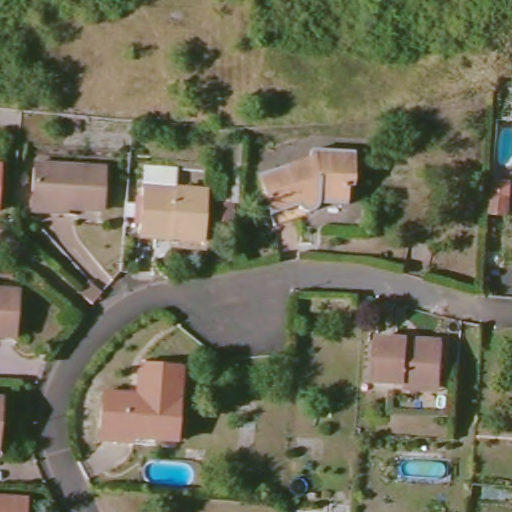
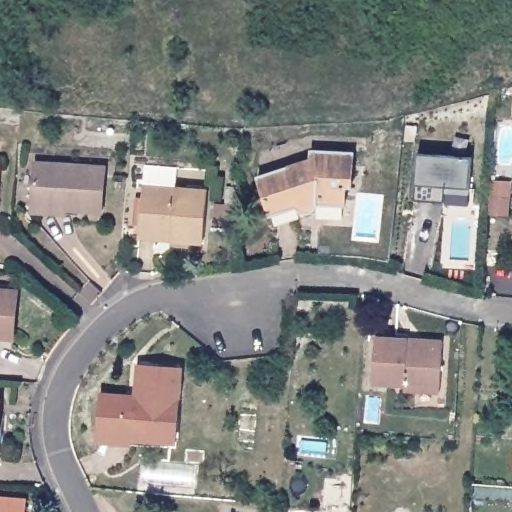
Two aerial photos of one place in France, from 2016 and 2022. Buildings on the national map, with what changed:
unchanged [(512,101),(512,115),(511,114),(512,101)]
unchanged [(318,202),(319,213),(304,213),(303,203),(276,213),(264,172),(292,162),(316,163),(317,145),(356,146),(354,180),(346,180),(348,204),(318,202)]
new [(419,153),(471,158),(470,188),(445,186),(444,202),(415,202),(419,153)]
unchanged [(63,206),(64,201),(35,198),(39,159),(105,167),(100,210),(63,206)]
unchanged [(2,163),(0,185),(0,163),(2,163)]
unchanged [(487,192),(488,176),(509,178),(508,194),(506,214),(486,213),(487,192)]
unchanged [(171,233),(171,228),(143,226),(146,184),(208,190),(203,236),(171,233)]
unchanged [(0,337),(0,290),(19,291),(16,337),(0,337)]
unchanged [(438,391),(422,390),(378,387),(381,348),(424,351),(440,352),(438,391)]
unchanged [(103,427),(106,388),(140,391),(143,357),(185,361),(178,433),(103,427)]
unchanged [(0,450),(0,403),(9,403),(7,450),(0,450)]
unchanged [(20,497),(18,512),(0,512),(0,496),(20,497)]

